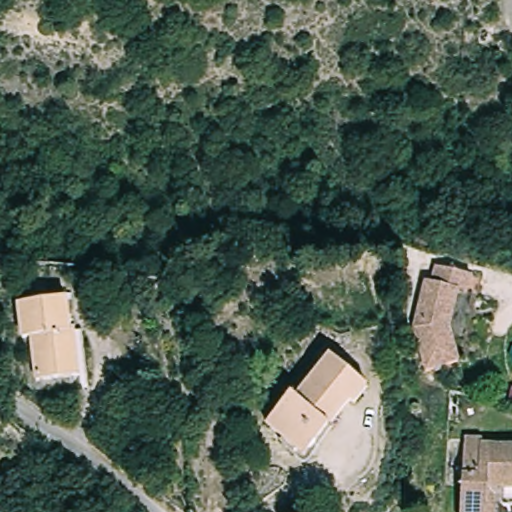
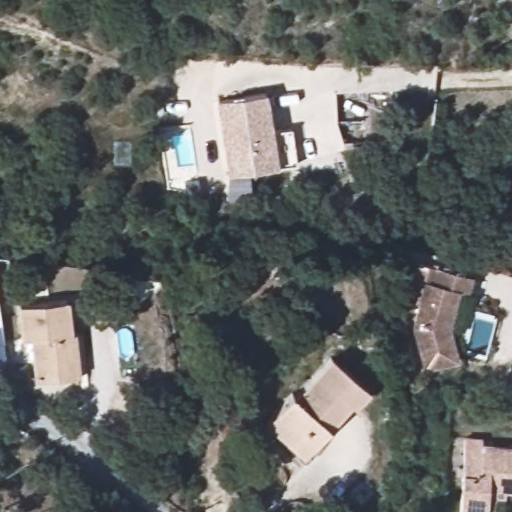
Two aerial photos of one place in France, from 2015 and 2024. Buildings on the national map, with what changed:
new [(229,177),(217,102),(267,94),(274,132),(291,130),(296,166),(278,168),(249,174),(254,197),(227,202),(229,177)]
unchanged [(423,280),(429,282),(433,266),(472,277),(467,293),(457,291),(447,327),(452,355),(422,362),(412,320),(423,280)]
unchanged [(71,305),(70,338),(84,339),(83,378),(27,377),(27,352),(38,352),(39,338),(18,338),(18,304),(71,305)]
new [(0,323),(0,320),(1,323),(0,323)]
unchanged [(333,362),(368,395),(300,458),(265,423),(333,362)]
unchanged [(467,443),(484,446),(483,452),(494,453),(512,456),(512,510),(498,508),(497,512),(457,512),(457,508),(467,443)]

